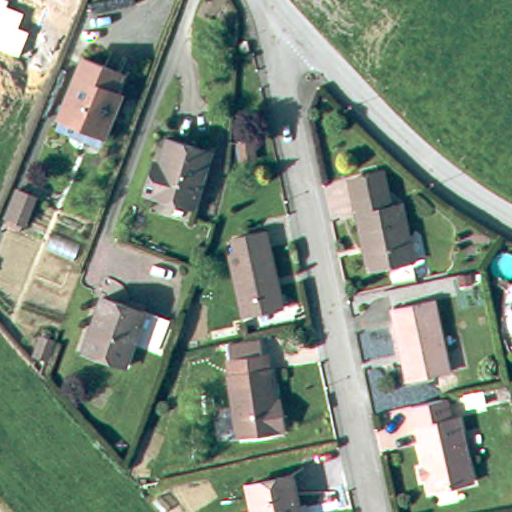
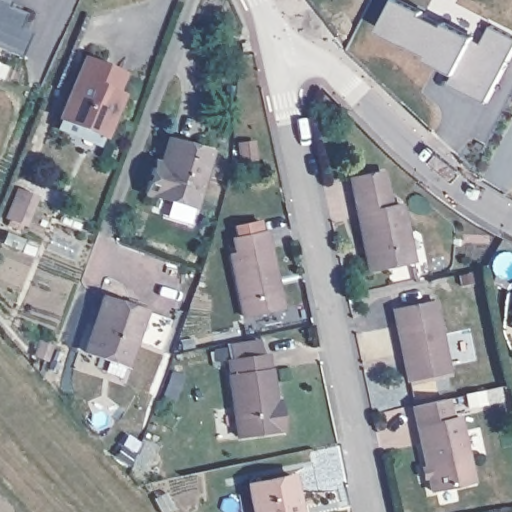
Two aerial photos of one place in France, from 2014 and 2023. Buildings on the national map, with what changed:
unchanged [(7,7),(23,12),(18,27),(31,32),(22,57),(0,48),(0,0),(8,0),(9,1),(7,7)]
new [(429,58),(431,53),(382,28),(396,0),(408,0),(427,10),(425,12),(447,23),(448,21),(476,36),(483,41),(492,25),(512,36),(512,54),(487,101),(450,82),(455,71),(429,58)]
unchanged [(249,36),(249,45),(242,45),(242,36),(249,36)]
unchanged [(65,130),(67,122),(63,121),(87,59),(125,74),(117,92),(126,96),(120,109),(109,139),(105,137),(102,145),(65,130)]
unchanged [(248,151),(237,151),(236,142),(238,142),(238,136),(245,136),(245,142),(248,142),(248,151)]
unchanged [(179,203),(148,195),(157,168),(158,162),(163,164),(171,139),(176,140),(211,150),(197,197),(195,207),(179,203)]
unchanged [(366,242),(351,177),(385,170),(392,204),(405,201),(417,259),(378,268),(372,270),(366,242)]
unchanged [(43,211),(28,243),(17,238),(20,231),(17,230),(27,204),(43,211)]
unchanged [(282,308),(247,315),(233,252),(238,251),(236,237),(270,231),(280,278),(285,307),(282,308)]
unchanged [(87,323),(94,295),(162,312),(155,342),(129,336),(122,366),(83,356),(80,355),(87,323)]
unchanged [(402,329),(398,313),(437,306),(452,376),(412,385),(399,330),(402,329)]
unchanged [(52,349),(43,367),(34,362),(42,345),(52,349)]
unchanged [(279,417),(281,438),(235,442),(228,380),(230,380),(228,365),(227,349),(262,347),(262,362),(266,362),(268,377),(270,377),(273,407),(278,407),(279,417)]
unchanged [(420,469),(428,467),(415,410),(449,402),(453,422),(462,421),(477,486),(434,495),(431,481),(423,482),(420,469)]
unchanged [(253,487),(295,478),(303,511),(304,512),(259,512),(253,487)]

